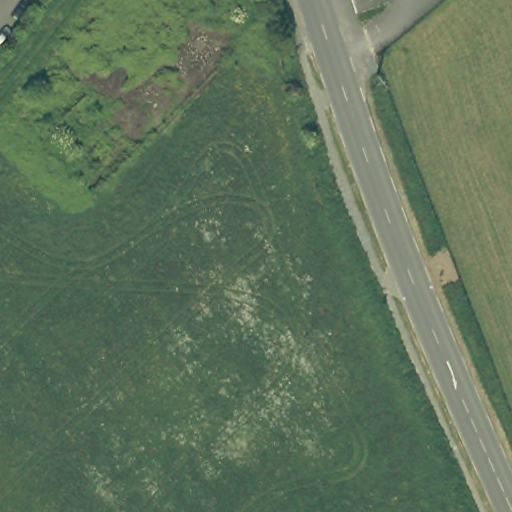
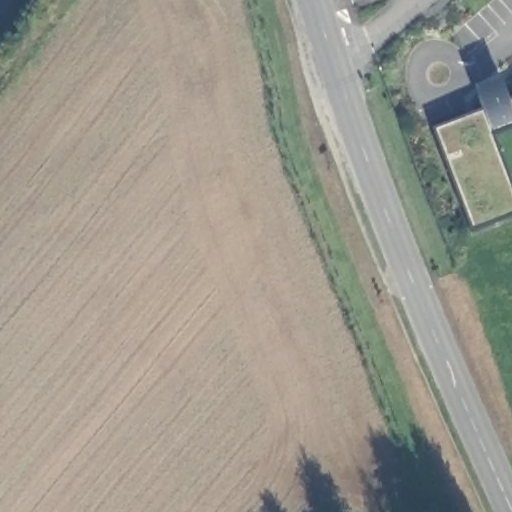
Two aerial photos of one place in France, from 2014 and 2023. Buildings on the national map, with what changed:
new [(493,135),(512,186),(512,215),(473,228),(434,129),(484,110),(474,85),(502,77),(512,99),(512,98),(512,129),(493,135)]

